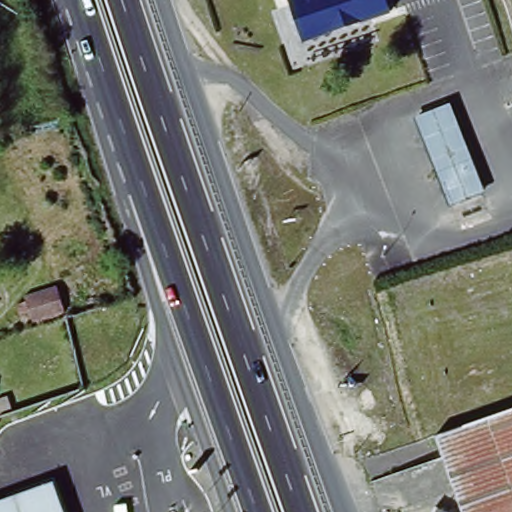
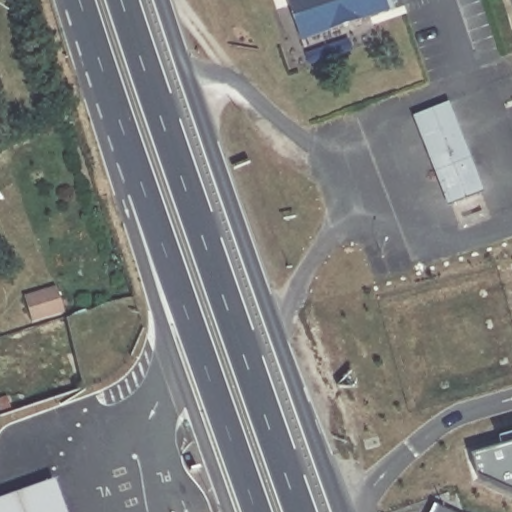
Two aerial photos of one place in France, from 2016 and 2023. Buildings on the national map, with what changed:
unchanged [(305,45),(290,0),(333,0),(343,32),(305,45)]
unchanged [(389,0),(394,15),(343,32),(333,0),(389,0)]
unchanged [(425,121),(453,111),(481,192),(453,202),(425,121)]
demolished [(431,437),(457,428),(512,409),(512,512),(459,512),(457,508),(452,496),(451,492),(440,463),(431,437)]
new [(478,476),(472,455),(501,446),(500,439),(512,436),(512,491),(478,476)]
unchanged [(52,512),(0,512),(0,504),(44,488),(52,512)]
unchanged [(433,507),(442,512),(431,512),(433,507)]

